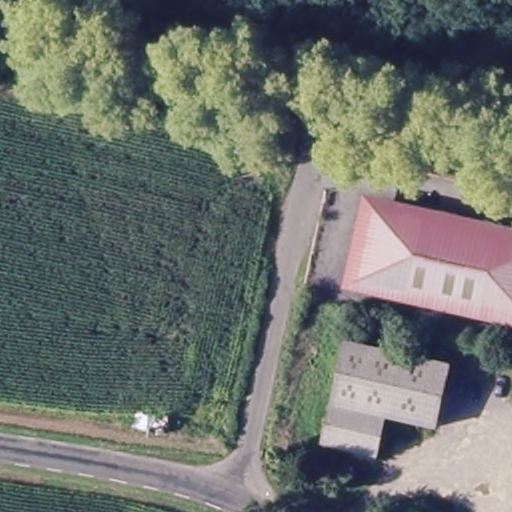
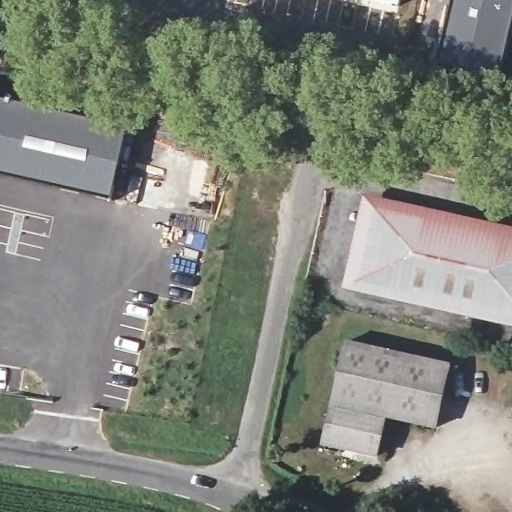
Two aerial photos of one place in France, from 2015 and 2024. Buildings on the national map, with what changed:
new [(399,7),(368,0),(401,0),(399,7)]
new [(453,0),(512,0),(512,29),(500,78),(436,66),(453,0)]
new [(112,200),(0,175),(0,97),(129,127),(112,200)]
unchanged [(512,238),(512,314),(360,282),(376,209),(512,238)]
unchanged [(321,451),(324,438),(344,344),(449,365),(435,429),(385,419),(378,458),(354,453),(353,457),(321,451)]

